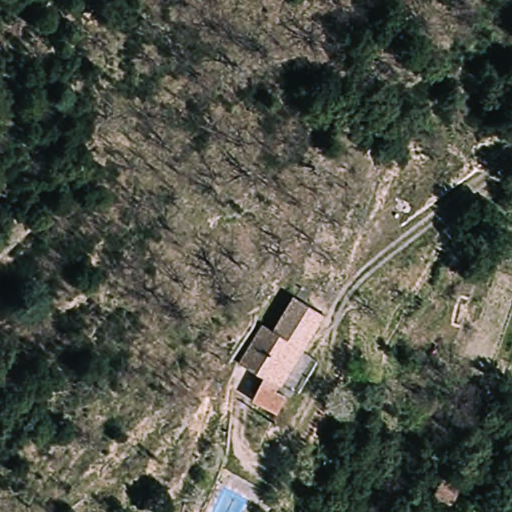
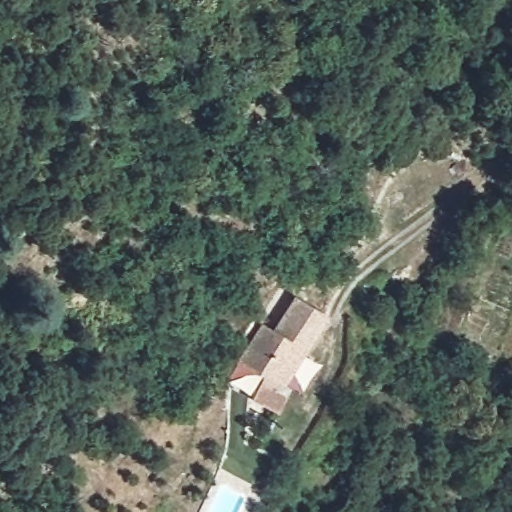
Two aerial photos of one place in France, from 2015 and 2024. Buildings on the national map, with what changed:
unchanged [(303,379),(287,371),(284,378),(240,354),(260,316),(278,326),(297,293),(320,306),(303,341),(318,348),(303,379)]
unchanged [(290,389),(282,406),(258,393),(268,376),(281,383),(290,389)]

